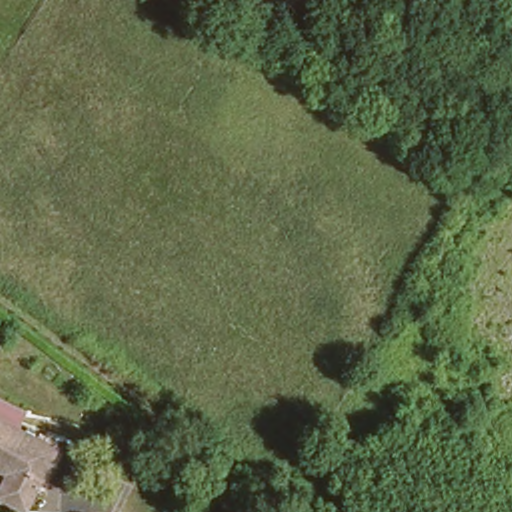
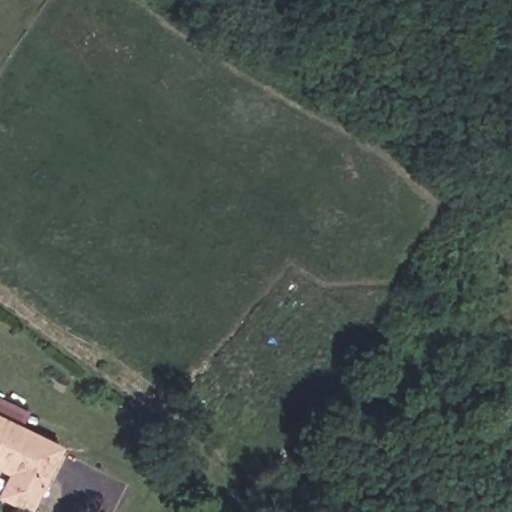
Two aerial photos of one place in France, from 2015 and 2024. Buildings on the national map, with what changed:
unchanged [(6,469),(0,466),(0,416),(56,443),(25,507),(4,496),(0,494),(0,482),(6,469)]

